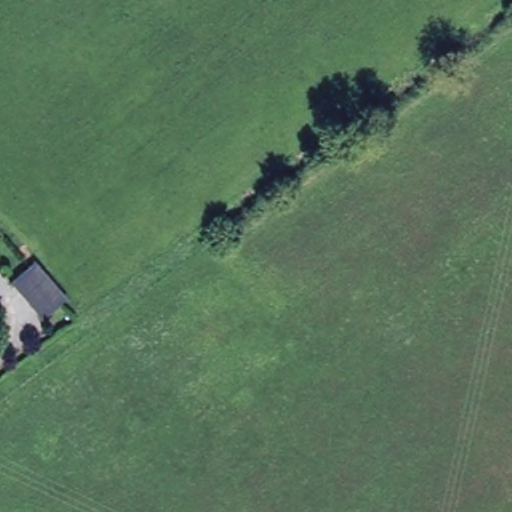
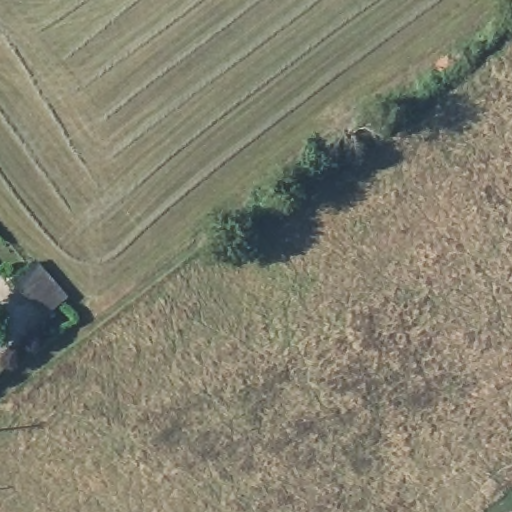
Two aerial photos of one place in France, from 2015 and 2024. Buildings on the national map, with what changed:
unchanged [(68,298),(44,317),(12,281),(34,262),(68,298)]

